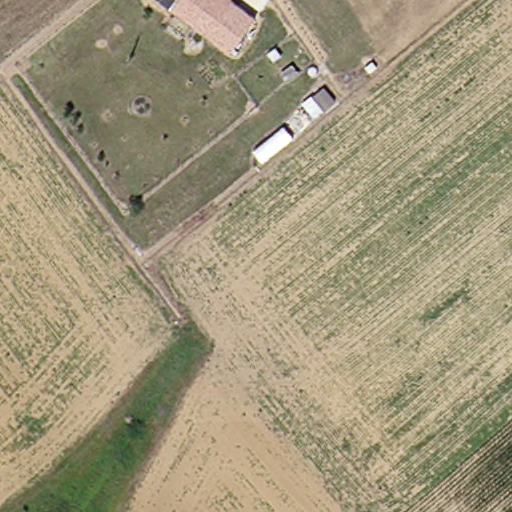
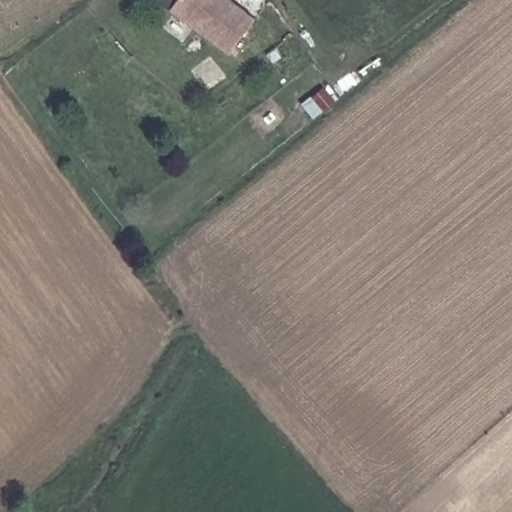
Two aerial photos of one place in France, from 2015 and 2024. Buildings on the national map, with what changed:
unchanged [(166,7),(171,0),(227,0),(250,19),(224,52),(166,7)]

